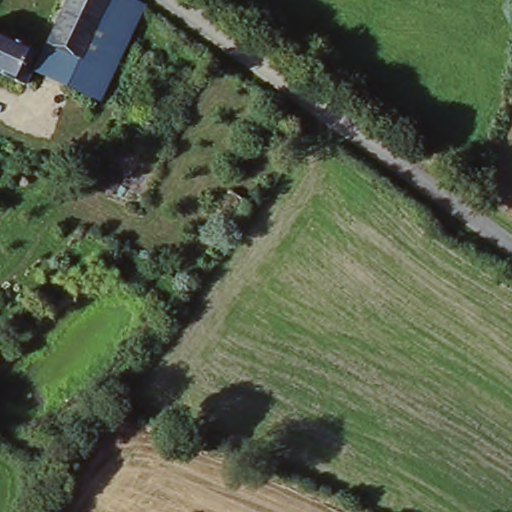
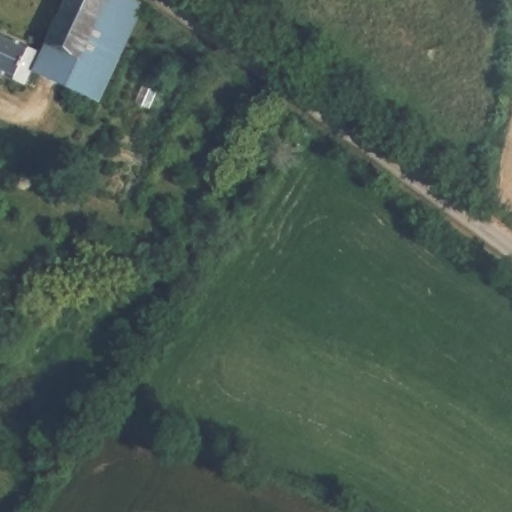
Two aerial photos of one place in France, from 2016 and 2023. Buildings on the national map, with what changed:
unchanged [(30,72),(64,0),(142,0),(145,2),(95,105),(30,72)]
unchanged [(27,51),(12,83),(0,77),(0,37),(27,51)]

